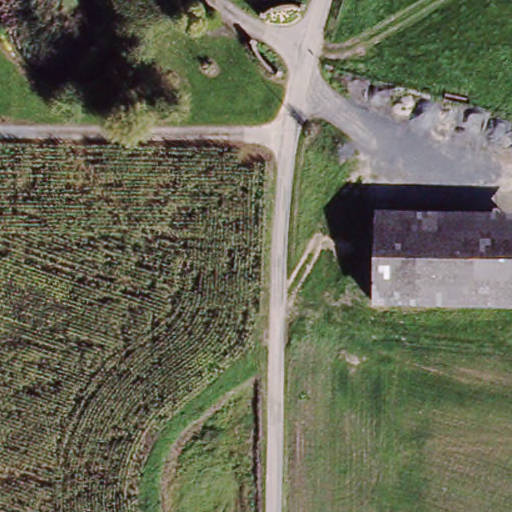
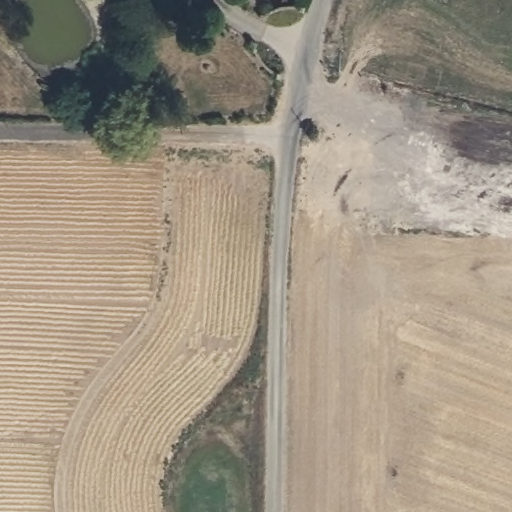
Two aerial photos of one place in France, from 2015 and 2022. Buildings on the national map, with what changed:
demolished [(369,309),(371,212),(512,213),(512,311),(369,309)]

